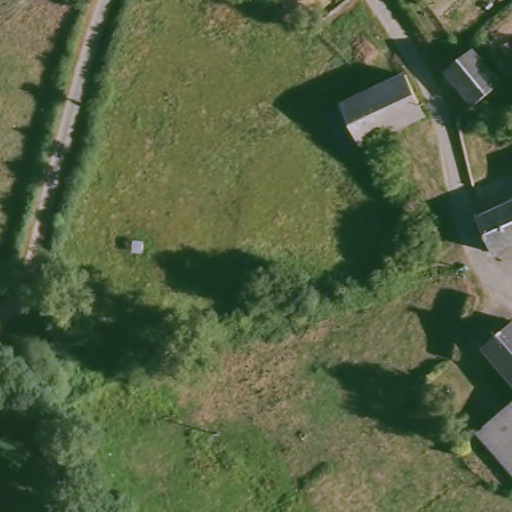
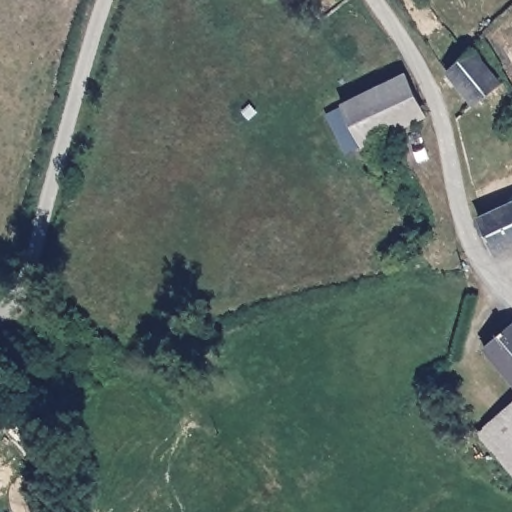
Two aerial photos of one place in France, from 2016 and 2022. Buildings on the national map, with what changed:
unchanged [(447,70),(472,47),(500,83),(475,103),(447,70)]
unchanged [(350,147),(331,107),(395,78),(413,117),(413,118),(350,147)]
unchanged [(478,214),(512,198),(512,241),(492,250),(478,214)]
unchanged [(511,320),(512,322),(512,385),(479,345),(511,320)]
unchanged [(512,395),(512,475),(474,431),(512,395)]

